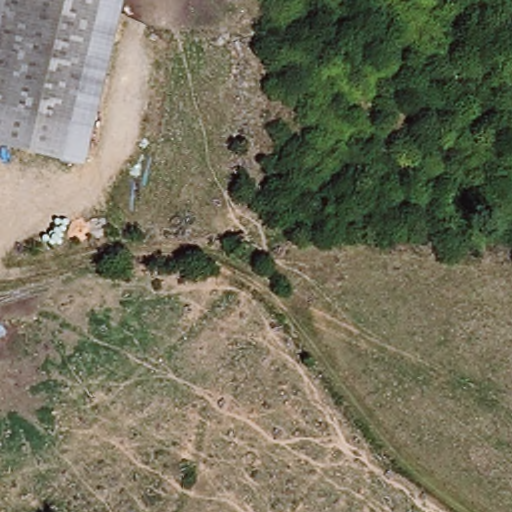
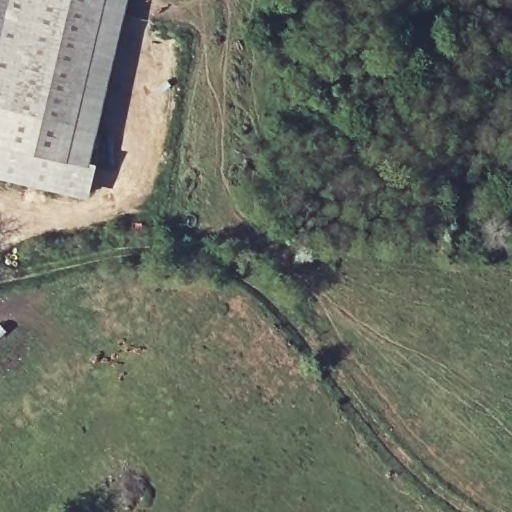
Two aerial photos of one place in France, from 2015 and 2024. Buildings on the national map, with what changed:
unchanged [(89,166),(0,145),(0,0),(126,0),(90,163),(89,166)]
new [(88,198),(0,179),(0,145),(89,166),(90,163),(96,165),(88,198)]

